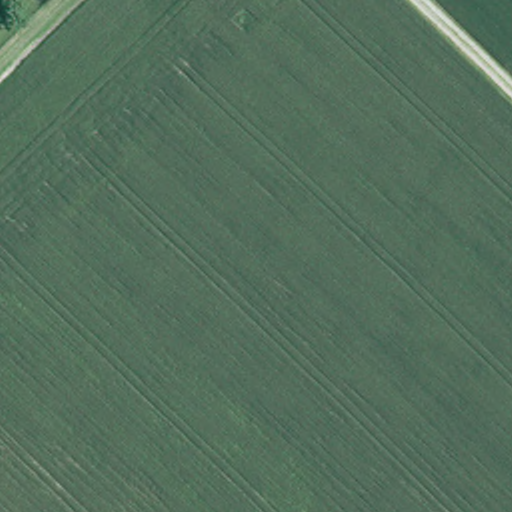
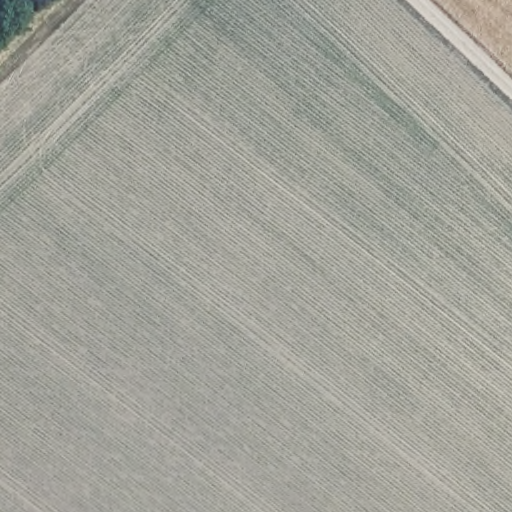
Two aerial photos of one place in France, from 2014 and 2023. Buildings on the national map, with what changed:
unchanged [(7,18),(25,0),(36,11),(18,29),(7,18)]

